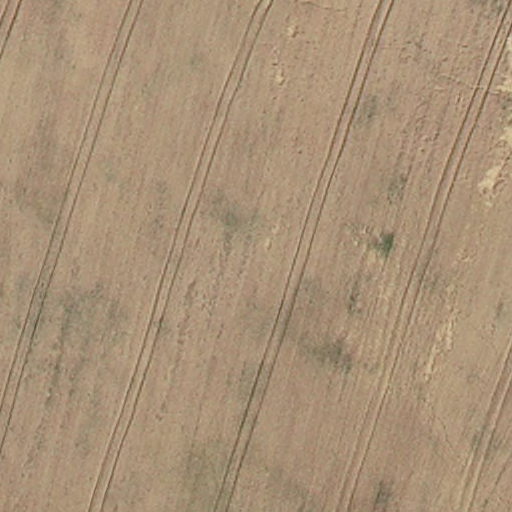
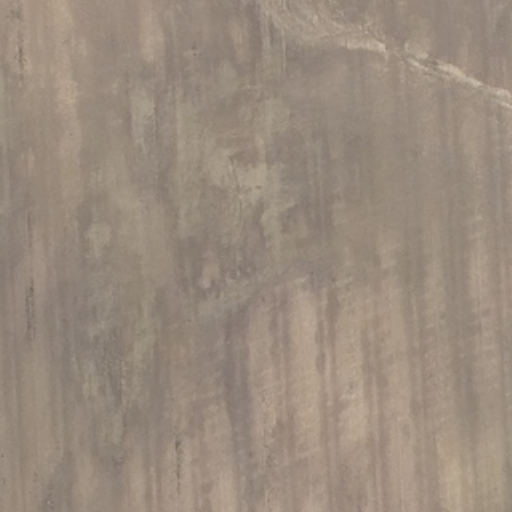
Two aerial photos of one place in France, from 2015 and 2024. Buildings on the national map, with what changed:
[]

